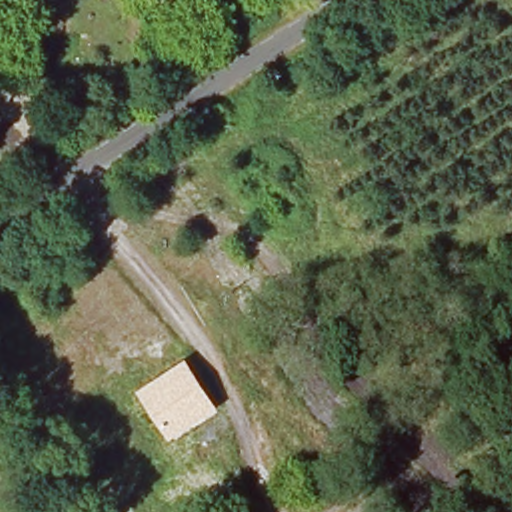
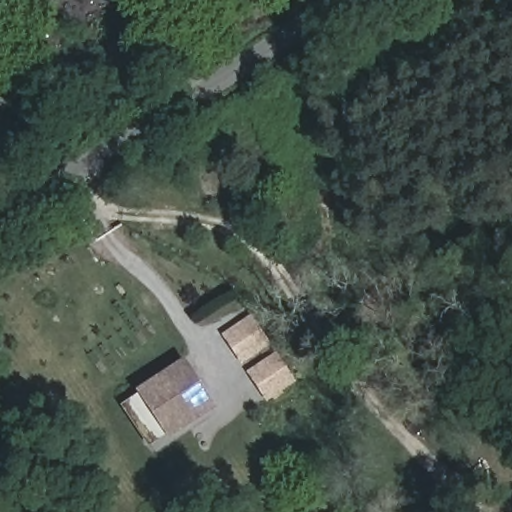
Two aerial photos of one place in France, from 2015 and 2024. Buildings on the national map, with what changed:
new [(222,335),(252,314),(262,329),(272,344),(242,365),(232,350),(222,335)]
new [(247,372),(277,351),(287,366),(297,381),(267,402),(257,387),(247,372)]
unchanged [(140,395),(182,366),(210,407),(167,436),(140,395)]

